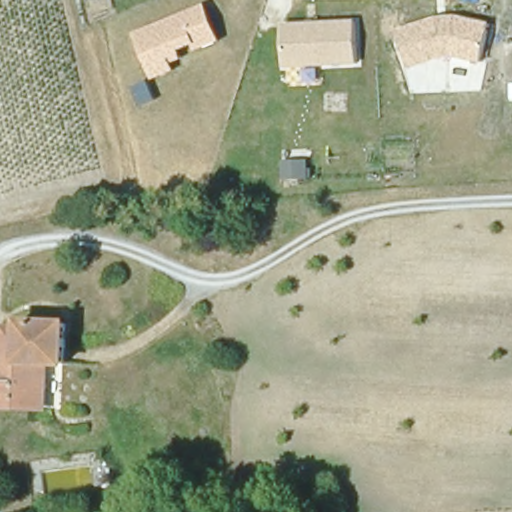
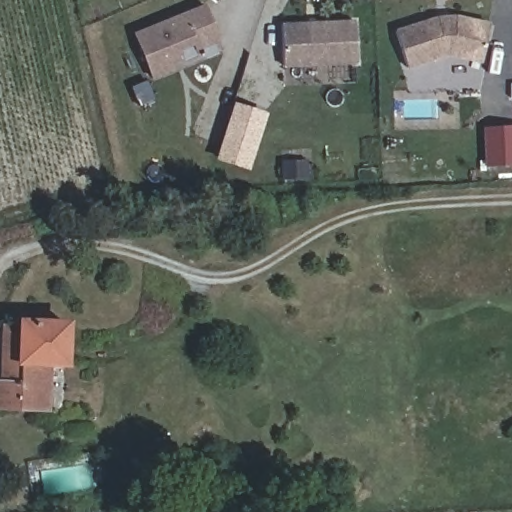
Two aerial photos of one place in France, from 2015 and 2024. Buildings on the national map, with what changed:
unchanged [(220,41),(196,51),(194,46),(182,51),(182,60),(173,65),(175,72),(154,79),(136,32),(206,5),(220,41)]
unchanged [(481,61),(458,56),(447,56),(408,68),(397,30),(430,18),(451,13),(490,21),(481,61)]
unchanged [(353,19),(357,64),(285,69),(282,24),(353,19)]
new [(242,106),(270,115),(254,168),(225,158),(242,106)]
new [(512,164),(489,165),(487,129),(512,127),(512,164)]
unchanged [(69,327),(67,369),(50,369),(47,410),(0,408),(0,384),(7,384),(8,358),(10,333),(20,333),(21,325),(69,327)]

